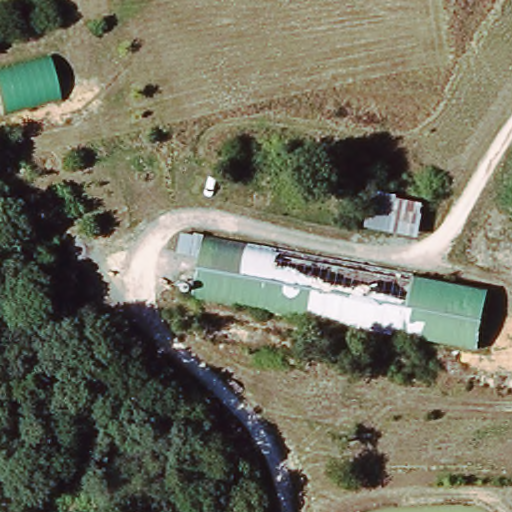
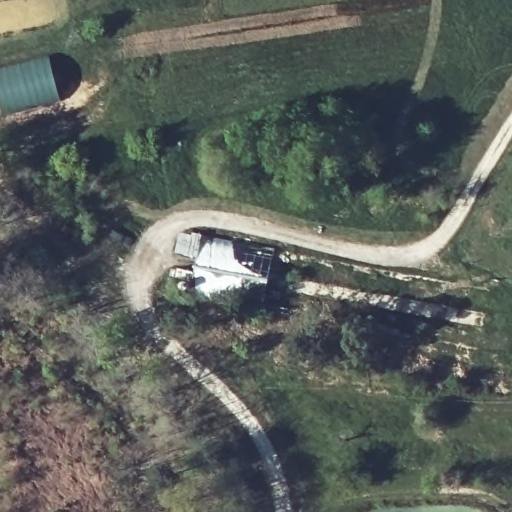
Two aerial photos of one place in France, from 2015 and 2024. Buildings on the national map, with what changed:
unchanged [(61,97),(5,113),(0,96),(0,68),(50,54),(61,97)]
unchanged [(376,186),(402,194),(402,197),(426,200),(420,238),(366,227),(376,186)]
demolished [(176,243),(182,223),(204,228),(199,248),(176,243)]
demolished [(488,286),(478,350),(402,335),(415,272),(488,286)]

